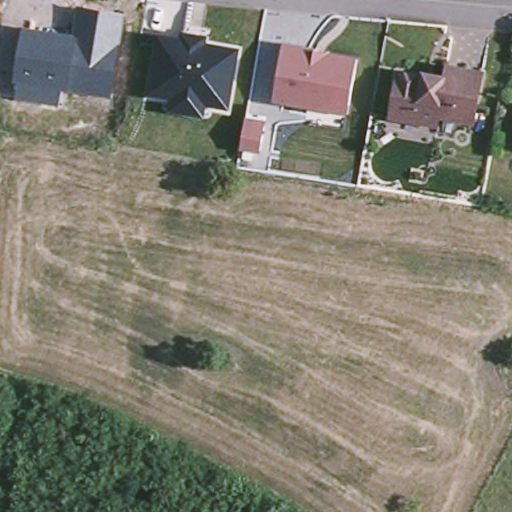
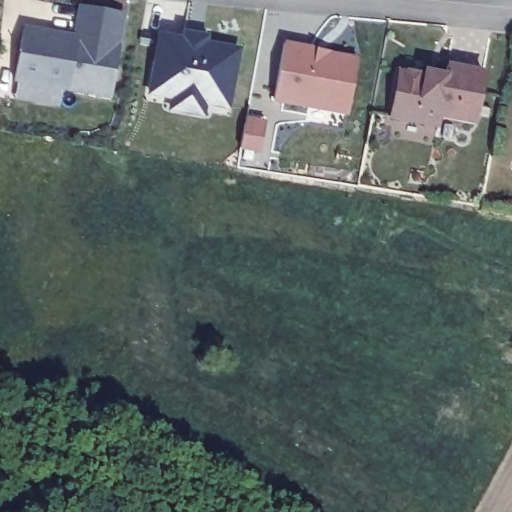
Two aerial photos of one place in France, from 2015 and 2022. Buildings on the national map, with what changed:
unchanged [(15,99),(16,83),(14,82),(25,26),(75,34),(78,7),(124,14),(109,96),(61,89),(57,104),(15,99)]
unchanged [(176,36),(177,30),(219,37),(217,44),(242,48),(231,111),(207,107),(206,119),(169,113),(171,100),(142,96),(159,33),(176,36)]
unchanged [(348,117),(272,103),(284,43),(358,58),(348,117)]
unchanged [(448,66),(485,73),(475,122),(439,115),(437,124),(392,116),(401,72),(426,78),(427,72),(439,75),(446,76),(448,66)]

